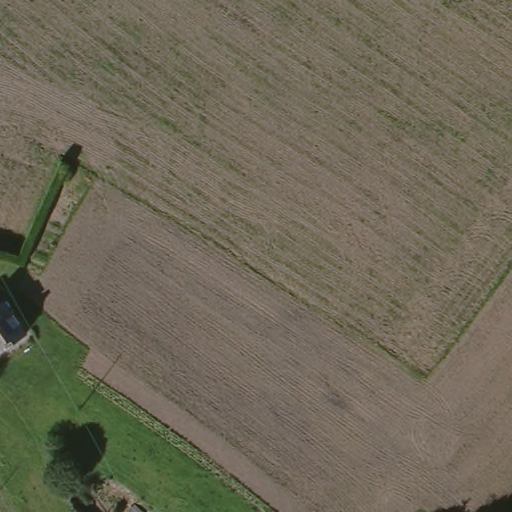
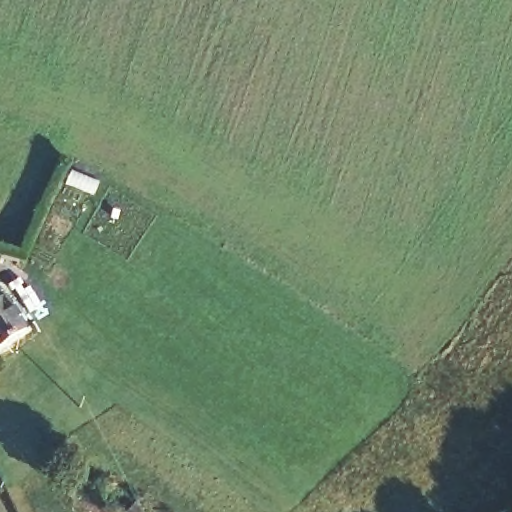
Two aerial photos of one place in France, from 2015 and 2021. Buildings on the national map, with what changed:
unchanged [(24,333),(0,349),(0,296),(24,333)]

